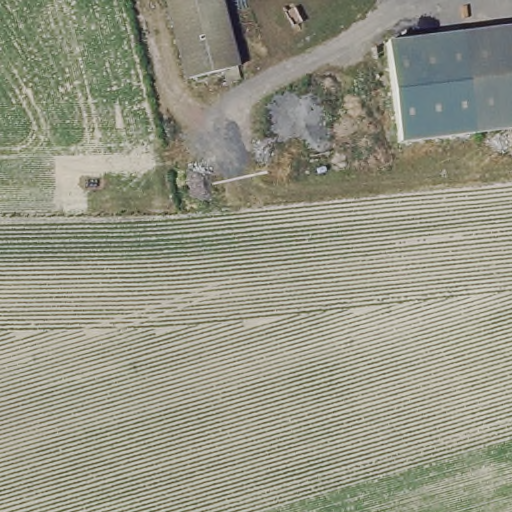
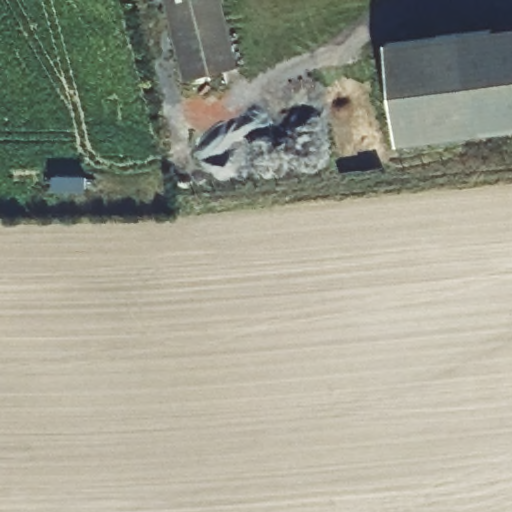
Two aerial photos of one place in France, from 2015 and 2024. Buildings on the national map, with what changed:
unchanged [(186,77),(167,0),(221,0),(237,67),(186,77)]
unchanged [(512,24),(512,125),(477,128),(470,28),(512,24)]
unchanged [(477,128),(438,131),(402,135),(395,35),(413,33),(470,28),(477,128)]

